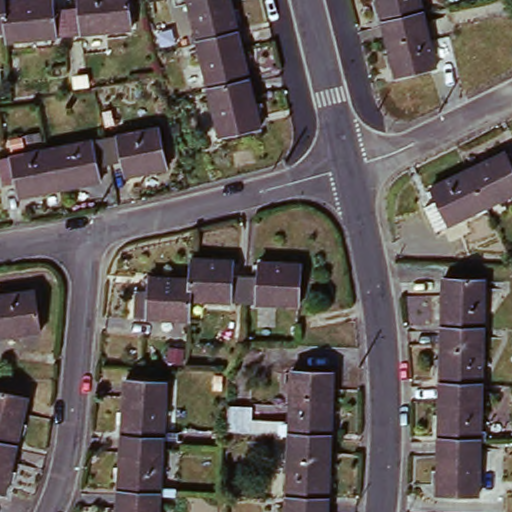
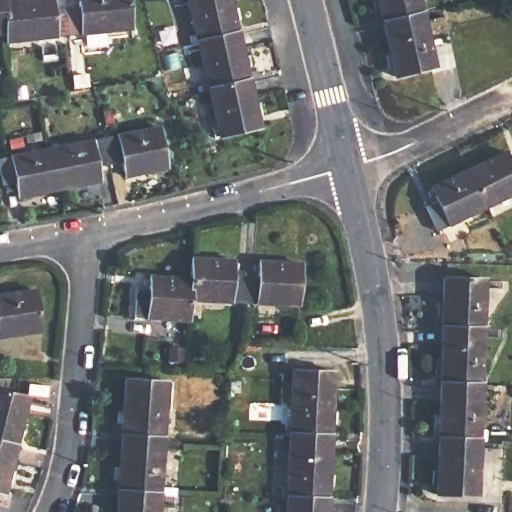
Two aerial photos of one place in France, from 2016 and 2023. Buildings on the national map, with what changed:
unchanged [(10,1),(15,0),(57,0),(58,11),(85,8),(84,0),(136,0),(139,31),(13,43),(12,34),(0,35),(0,0),(10,0),(10,1)]
unchanged [(256,128),(215,138),(183,0),(227,0),(256,128)]
unchanged [(433,67),(392,77),(374,0),(417,0),(433,67)]
unchanged [(169,170),(127,178),(124,164),(98,169),(101,183),(21,199),(18,186),(4,188),(0,167),(0,160),(161,127),(169,170)]
unchanged [(438,206),(433,193),(507,158),(512,166),(512,201),(436,236),(426,213),(438,206)]
unchanged [(234,262),(233,276),(261,278),(261,263),(303,266),(301,308),(193,301),(191,322),(134,319),(135,291),(150,291),(151,278),(192,280),(193,259),(234,262)]
unchanged [(482,278),(476,497),(435,496),(441,278),(482,278)]
unchanged [(41,333),(0,339),(0,296),(35,291),(41,333)]
unchanged [(325,512),(283,512),(288,371),(331,373),(325,512)]
unchanged [(156,512),(113,512),(121,382),(162,383),(156,512)]
unchanged [(5,496),(0,495),(0,392),(28,400),(5,496)]

